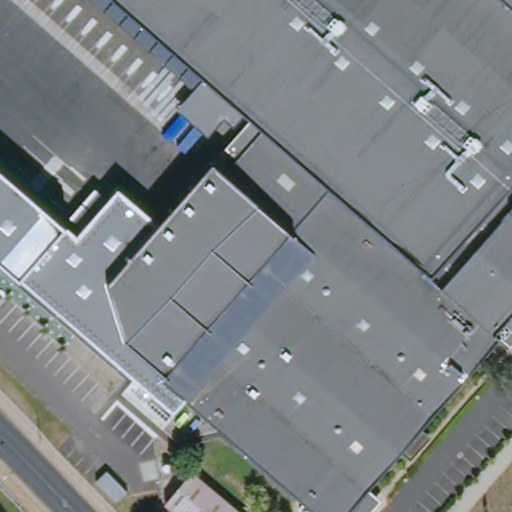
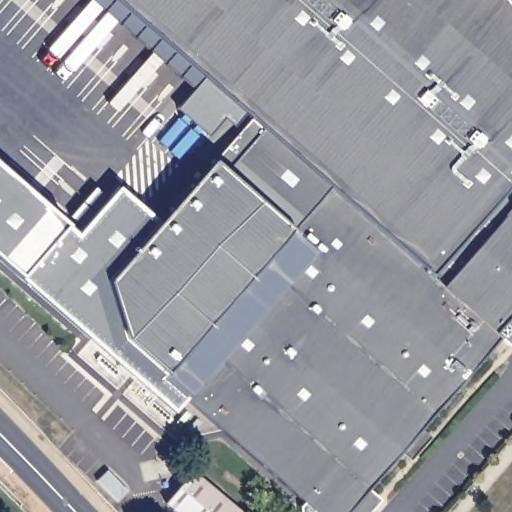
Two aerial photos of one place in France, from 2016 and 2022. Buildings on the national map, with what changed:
unchanged [(406,446),(369,488),(348,512),(316,512),(305,502),(163,377),(166,373),(141,351),(126,337),(106,282),(248,120),(232,106),(224,116),(111,17),(93,0),(512,0),(512,347),(503,338),(501,338),(418,432),(425,438),(413,452),(406,446)]
unchanged [(153,228),(106,282),(118,316),(126,337),(141,351),(166,373),(163,377),(184,397),(173,412),(21,273),(18,276),(0,260),(0,171),(63,226),(65,223),(76,232),(83,225),(70,215),(97,184),(111,195),(118,186),(161,220),(153,228)]
unchanged [(193,472),(238,512),(174,512),(166,505),(193,472)]
unchanged [(374,492),(375,508),(372,512),(348,512),(369,488),(374,492)]
unchanged [(302,512),(301,507),(305,502),(316,512),(302,512)]

